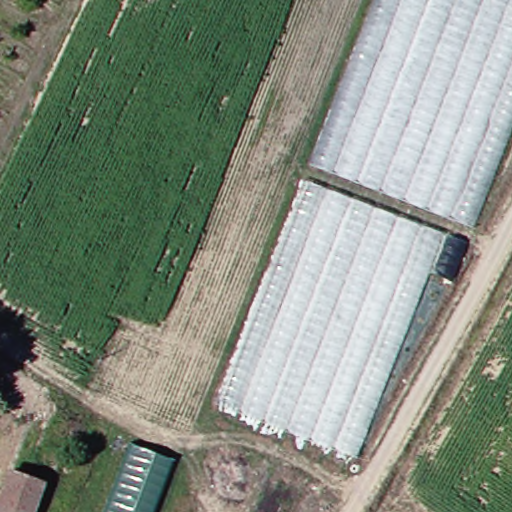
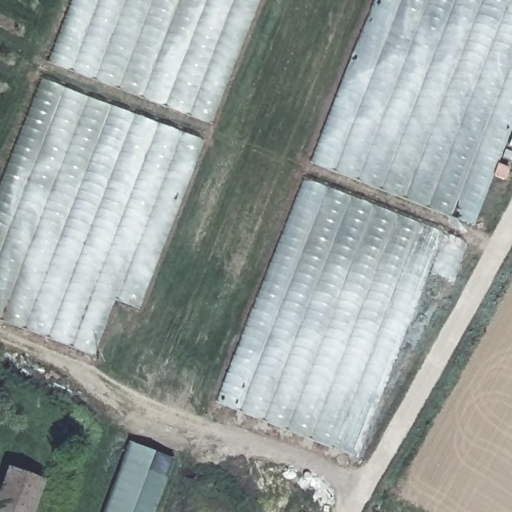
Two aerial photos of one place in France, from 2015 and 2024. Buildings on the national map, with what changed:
new [(211,125),(50,62),(74,0),(259,0),(211,125)]
unchanged [(477,227),(452,219),(359,458),(218,406),(380,0),(512,0),(512,138),(477,227)]
new [(139,309),(117,301),(94,357),(0,321),(0,193),(44,81),(203,142),(139,309)]
unchanged [(155,512),(106,512),(131,444),(176,458),(155,512)]
unchanged [(35,512),(0,512),(16,471),(46,484),(35,512)]

